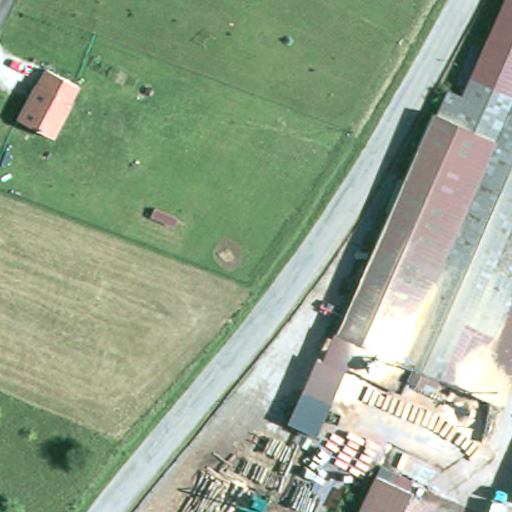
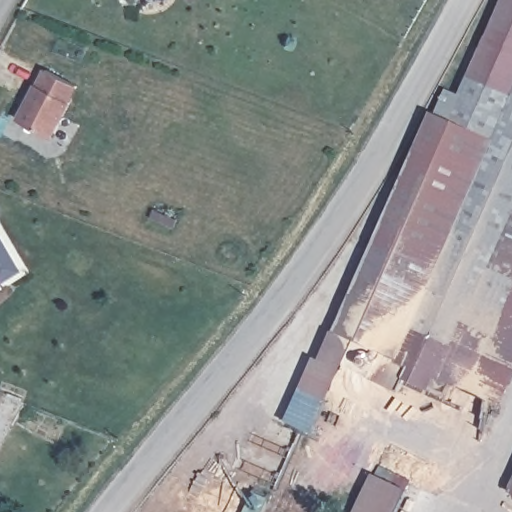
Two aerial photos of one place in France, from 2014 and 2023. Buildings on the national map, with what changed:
unchanged [(512,0),(512,60),(482,46),(502,0),(512,0)]
unchanged [(343,325),(323,317),(433,75),(452,83),(470,41),(482,46),(512,60),(512,372),(429,337),(423,351),(395,338),(390,352),(376,346),(387,318),(379,315),(368,342),(341,329),(343,325)]
unchanged [(43,69),(77,86),(52,134),(17,115),(43,69)]
new [(23,271),(2,283),(0,280),(0,233),(23,271)]
unchanged [(285,374),(299,344),(327,357),(313,388),(285,374)]
unchanged [(313,388),(298,419),(270,404),(285,374),(313,388)]
unchanged [(380,462),(397,472),(392,482),(405,488),(393,512),(354,512),(380,462)]
unchanged [(512,469),(512,492),(503,488),(512,469)]

